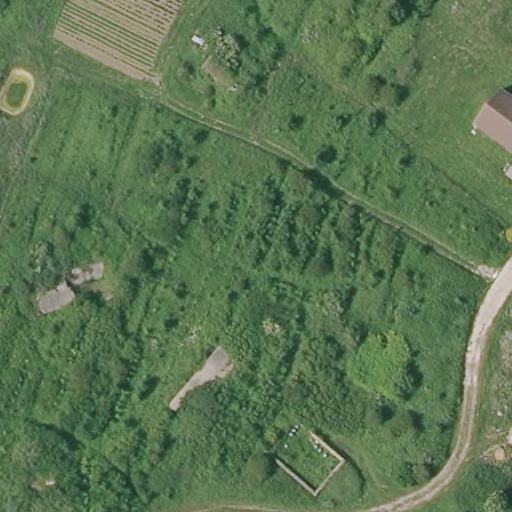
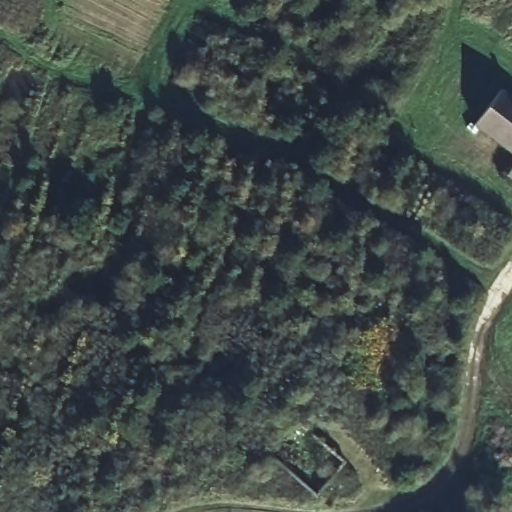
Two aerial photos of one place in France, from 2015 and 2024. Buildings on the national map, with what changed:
unchanged [(325,33),(345,4),(382,26),(360,61),(325,33)]
unchanged [(197,68),(220,42),(250,69),(234,97),(197,68)]
unchanged [(402,96),(432,55),(449,73),(420,111),(402,99),(402,96)]
unchanged [(512,94),(512,155),(468,123),(499,84),(512,94)]
unchanged [(502,172),(512,159),(512,180),(502,172)]
unchanged [(107,282),(115,280),(119,294),(101,303),(97,293),(26,312),(14,282),(97,254),(107,282)]
unchanged [(220,339),(245,363),(192,424),(165,403),(220,339)]
unchanged [(432,421),(410,457),(312,384),(341,345),(432,421)]
unchanged [(272,394),(344,456),(312,493),(242,431),(272,394)]
unchanged [(60,464),(57,505),(22,503),(25,463),(60,464)]

